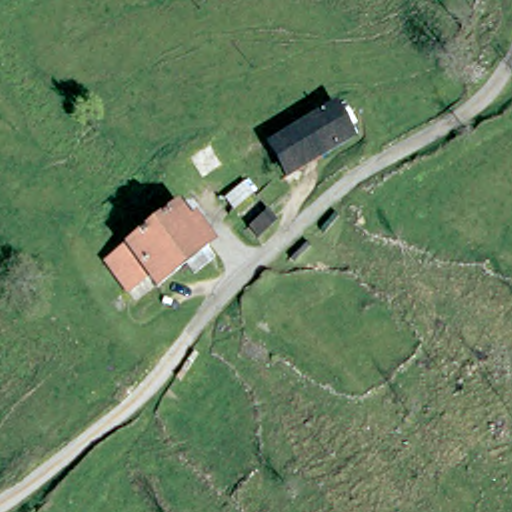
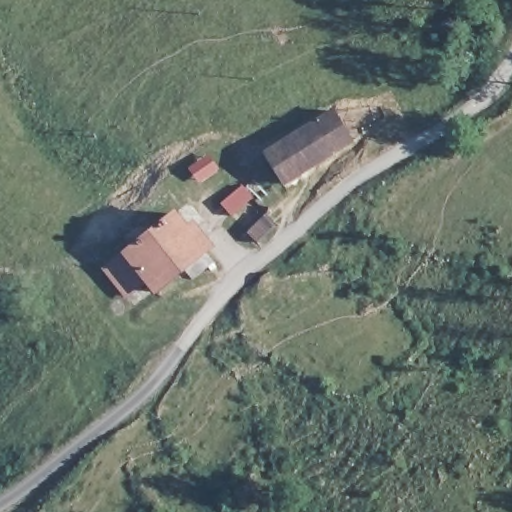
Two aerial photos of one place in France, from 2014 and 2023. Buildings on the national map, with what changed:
unchanged [(287,191),(269,163),(268,161),(336,117),(355,144),(353,145),(287,191)]
unchanged [(246,231),(266,217),(271,213),(279,223),(273,227),(254,242),(246,231)]
unchanged [(217,265),(196,281),(189,272),(160,292),(154,283),(132,298),(108,267),(180,215),(217,265)]

